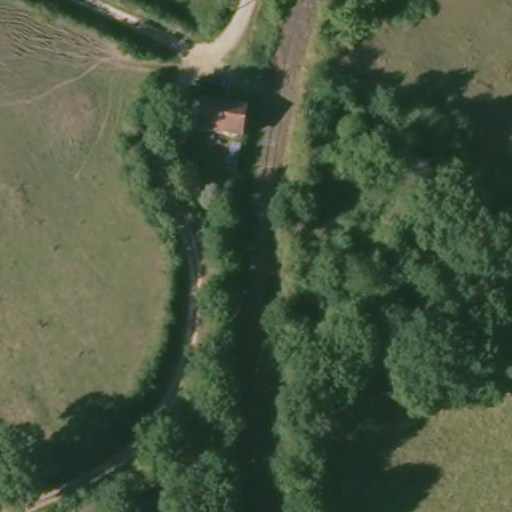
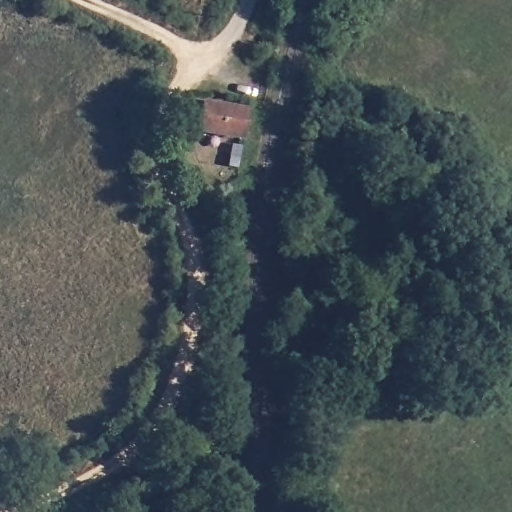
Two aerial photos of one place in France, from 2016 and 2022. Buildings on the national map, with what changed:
unchanged [(248,143),(205,134),(206,125),(196,124),(200,107),(210,109),(210,106),(253,114),(248,143)]

